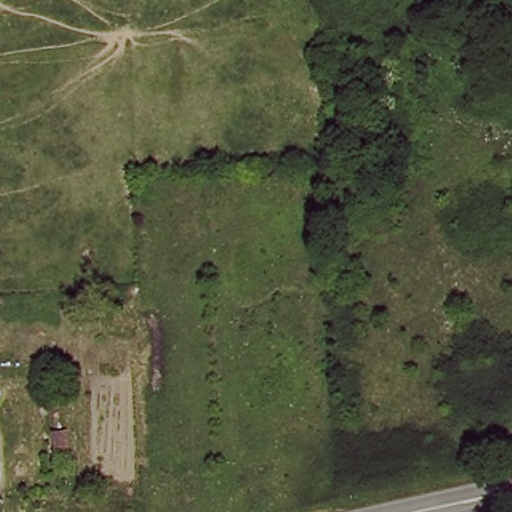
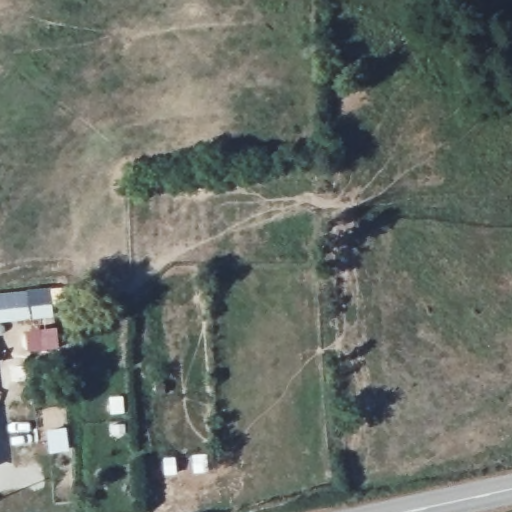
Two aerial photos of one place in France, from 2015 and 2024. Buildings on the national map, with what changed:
new [(52,310),(0,316),(0,295),(50,289),(52,310)]

